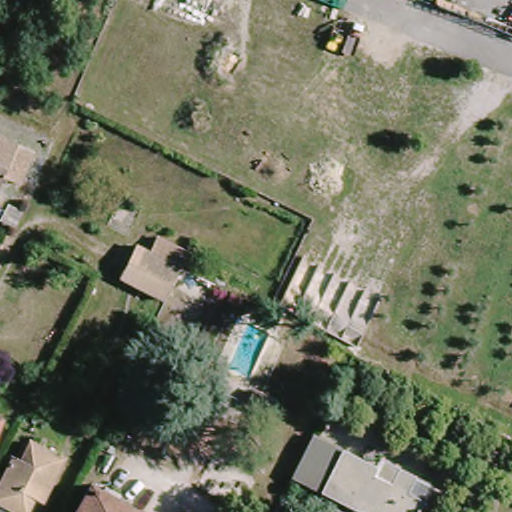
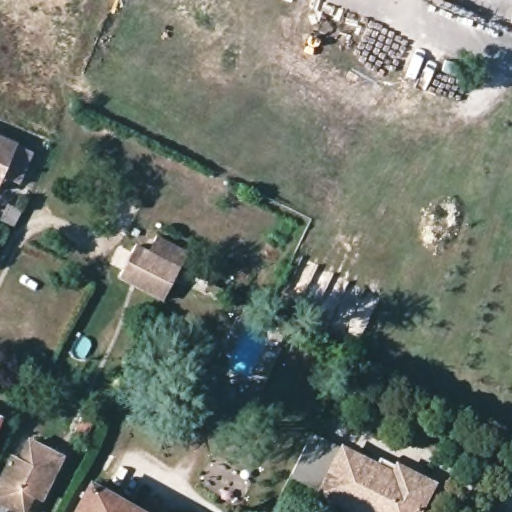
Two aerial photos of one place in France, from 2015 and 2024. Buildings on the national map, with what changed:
unchanged [(32,147),(19,179),(2,172),(0,175),(0,134),(32,147)]
unchanged [(176,302),(126,276),(140,245),(193,270),(176,302)]
unchanged [(269,425),(248,414),(254,401),(276,413),(269,425)]
unchanged [(4,420),(0,429),(0,418),(4,420)]
unchanged [(10,453),(24,460),(33,439),(62,453),(41,496),(24,487),(11,512),(0,512),(0,477),(10,453)]
unchanged [(290,480),(309,440),(374,474),(379,464),(396,473),(414,483),(430,491),(422,507),(419,512),(348,512),(290,480)]
unchanged [(136,512),(76,512),(89,487),(136,512)]

